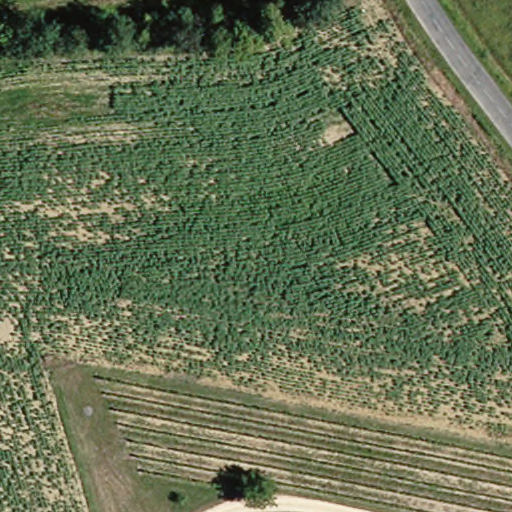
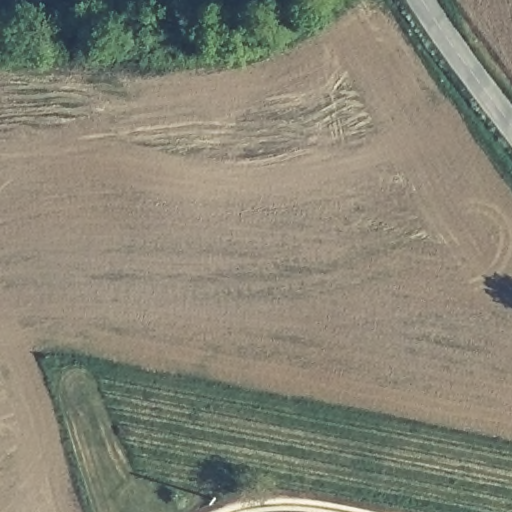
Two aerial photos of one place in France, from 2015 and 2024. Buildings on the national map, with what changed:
[]

